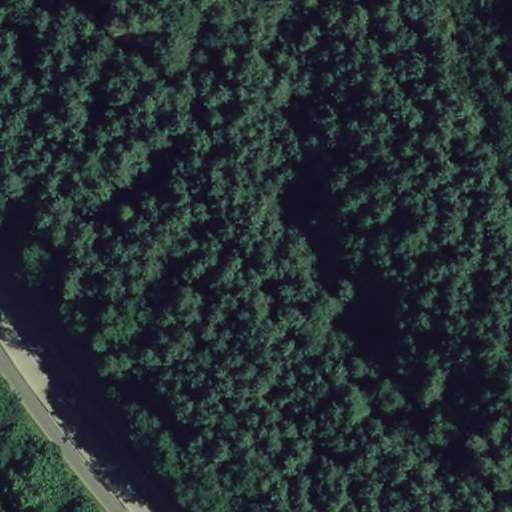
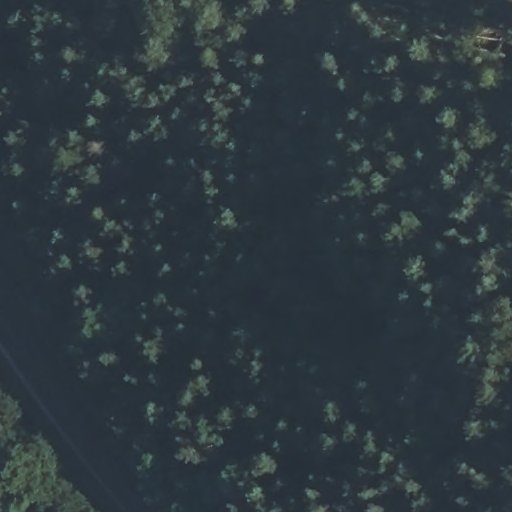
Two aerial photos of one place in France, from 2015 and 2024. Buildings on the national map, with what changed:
[]

